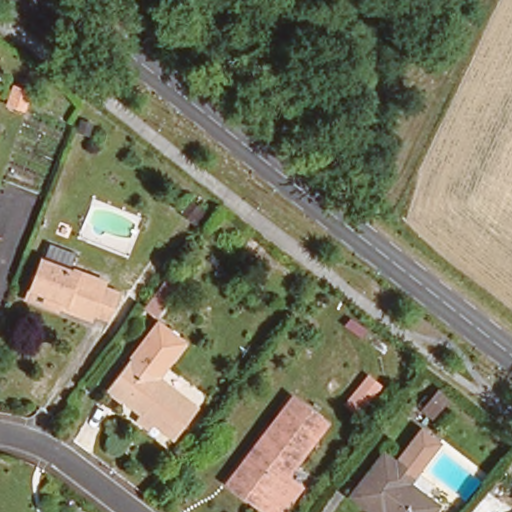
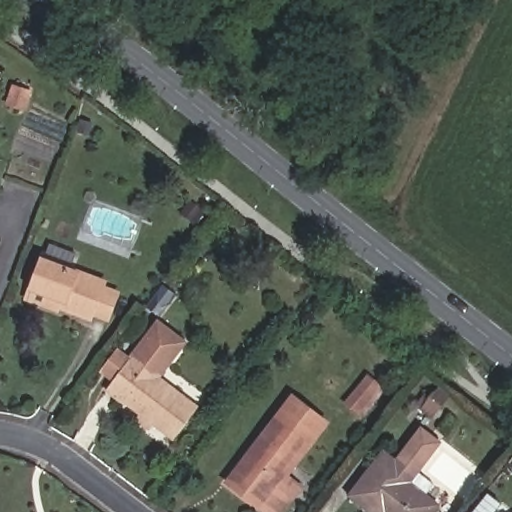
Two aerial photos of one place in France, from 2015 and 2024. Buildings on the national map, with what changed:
unchanged [(28,92),(23,111),(6,106),(11,87),(28,92)]
unchanged [(200,209),(190,222),(181,214),(190,202),(200,209)]
unchanged [(27,292),(32,280),(41,256),(104,280),(101,284),(116,289),(106,315),(91,309),(90,313),(58,301),(56,303),(27,292)]
unchanged [(172,295),(153,320),(141,311),(161,287),(172,295)]
unchanged [(141,411),(146,404),(113,379),(136,349),(200,399),(178,429),(156,412),(151,419),(141,411)]
unchanged [(236,462),(292,388),(325,414),(284,467),(299,478),(274,510),(260,499),(227,473),(236,462)]
unchanged [(441,406),(431,418),(422,411),(419,414),(407,405),(420,389),(441,406)]
unchanged [(416,485),(429,495),(415,512),(389,512),(381,506),(378,511),(346,486),(377,445),(389,454),(414,421),(433,436),(411,465),(424,475),(416,485)]

